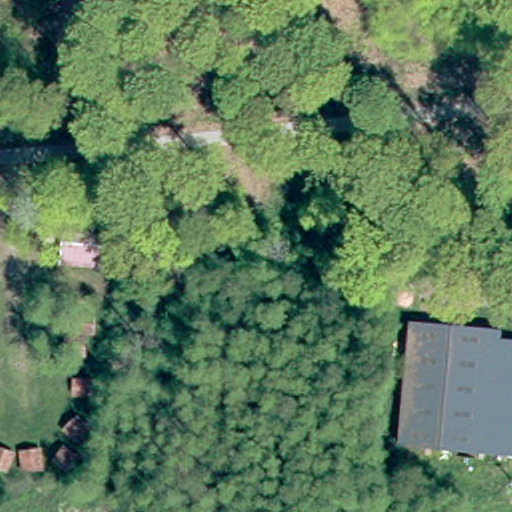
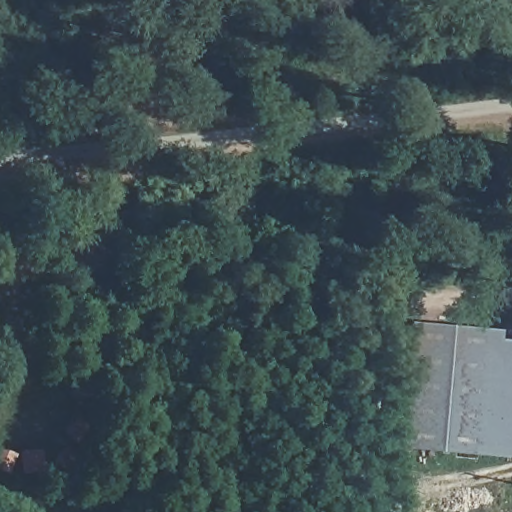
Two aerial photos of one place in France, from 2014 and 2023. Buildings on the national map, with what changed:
unchanged [(65,244),(106,245),(105,276),(64,275),(65,244)]
unchanged [(412,452),(414,329),(501,331),(501,343),(512,344),(512,455),(412,452)]

